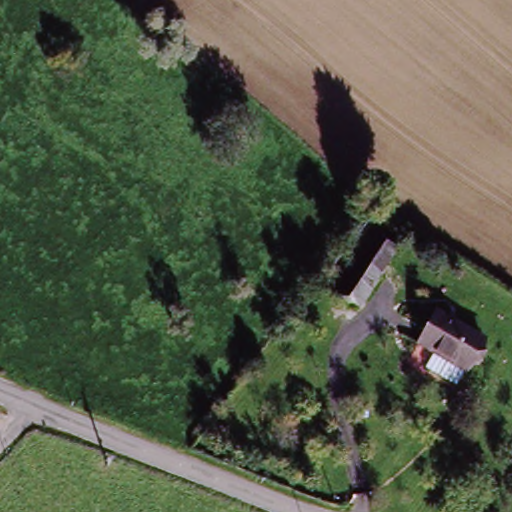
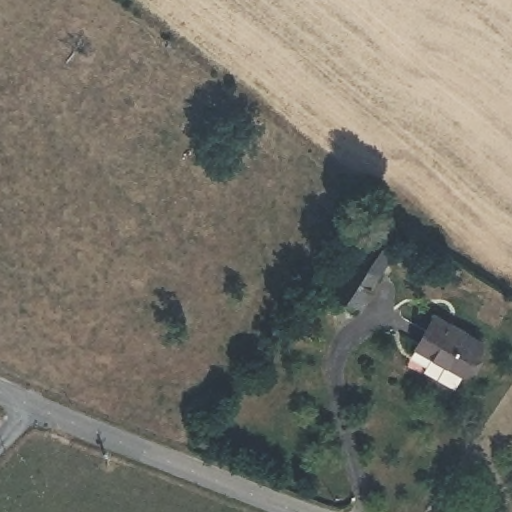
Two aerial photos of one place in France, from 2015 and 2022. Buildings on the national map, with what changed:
unchanged [(395,259),(354,314),(334,299),(375,244),(395,259)]
unchanged [(418,350),(432,315),(484,336),(471,369),(418,350)]

